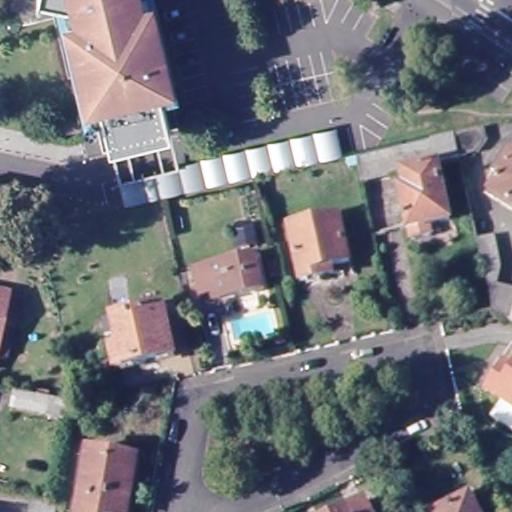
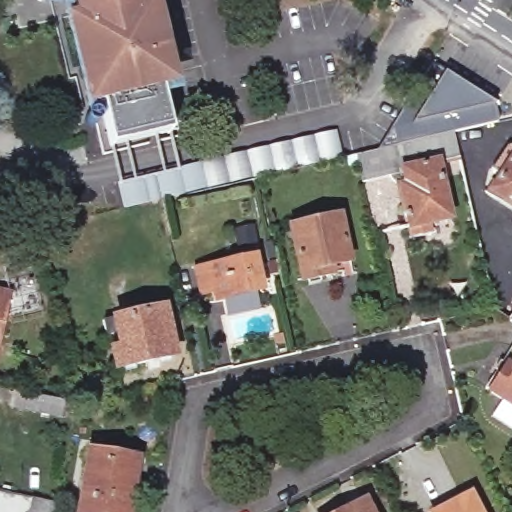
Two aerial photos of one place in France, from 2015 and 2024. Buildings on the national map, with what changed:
unchanged [(165,89),(174,130),(114,144),(104,102),(97,103),(77,13),(85,11),(84,5),(67,0),(152,0),(172,86),(165,89)]
new [(410,124),(443,70),(495,102),(499,120),(450,133),(409,141),(407,131),(410,124)]
unchanged [(485,126),(486,139),(478,151),(459,155),(460,159),(438,165),(439,176),(443,176),(448,199),(445,200),(449,219),(430,224),(432,234),(412,239),(404,207),(409,206),(402,172),(370,179),(365,153),(373,151),(454,133),(485,126)]
unchanged [(189,198),(183,173),(182,169),(335,133),(341,164),(257,182),(189,198)]
unchanged [(502,176),(492,170),(506,146),(512,145),(512,204),(492,191),(502,176)]
unchanged [(128,211),(122,186),(183,173),(189,198),(160,204),(128,211)]
unchanged [(21,209),(0,204),(0,187),(24,192),(21,209)]
unchanged [(325,275),(303,280),(291,228),(340,216),(350,261),(342,262),(344,271),(325,275)]
unchanged [(0,235),(38,227),(43,247),(16,253),(19,265),(0,269),(0,235)]
unchanged [(260,248),(243,252),(239,235),(256,231),(260,248)]
unchanged [(492,309),(487,287),(482,264),(477,241),(495,237),(505,279),(512,283),(512,321),(492,309)]
unchanged [(214,296),(201,298),(196,274),(254,260),(262,295),(216,305),(214,296)]
unchanged [(19,294),(12,326),(5,353),(0,351),(0,289),(5,291),(19,294)]
unchanged [(113,349),(120,347),(116,333),(109,335),(106,321),(164,307),(175,356),(116,368),(113,349)]
unchanged [(512,354),(512,408),(487,391),(512,354)]
unchanged [(66,400),(62,417),(10,406),(14,390),(66,400)]
unchanged [(92,451),(137,459),(127,512),(80,512),(92,451)]
unchanged [(56,512),(30,512),(32,497),(58,502),(56,512)]
unchanged [(472,497),(480,512),(440,512),(472,497)]
unchanged [(365,500),(372,512),(341,512),(365,500)]

